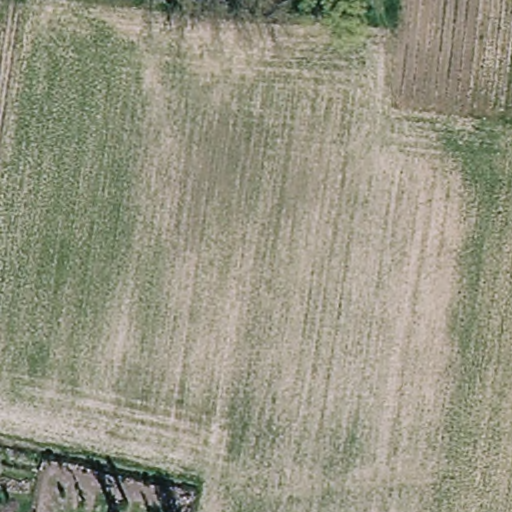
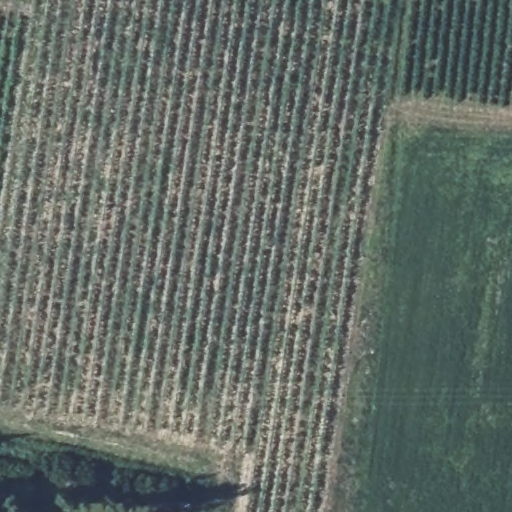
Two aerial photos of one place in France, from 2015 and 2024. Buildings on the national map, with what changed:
[]

